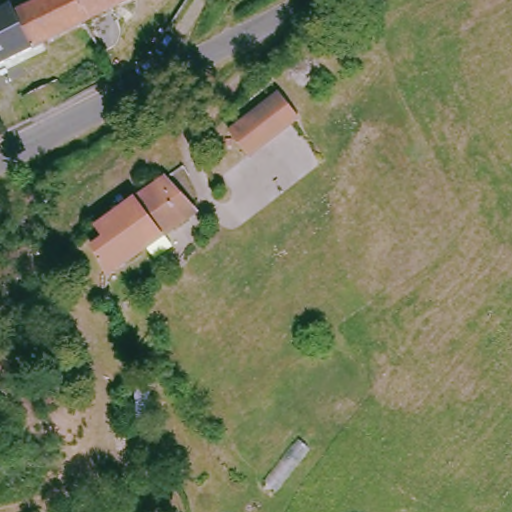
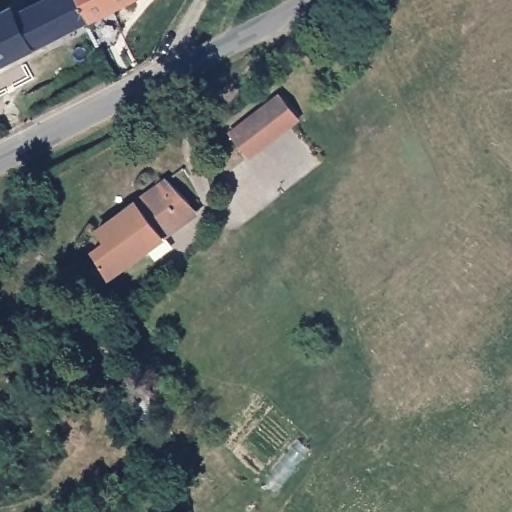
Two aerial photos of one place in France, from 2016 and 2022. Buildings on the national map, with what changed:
unchanged [(0,64),(0,10),(8,5),(12,12),(36,0),(76,0),(87,21),(29,50),(0,64)]
unchanged [(76,0),(130,0),(87,21),(76,0)]
unchanged [(228,126),(279,86),(301,115),(250,154),(228,126)]
unchanged [(165,171),(183,189),(200,207),(167,232),(110,274),(92,243),(104,233),(95,221),(165,171)]

